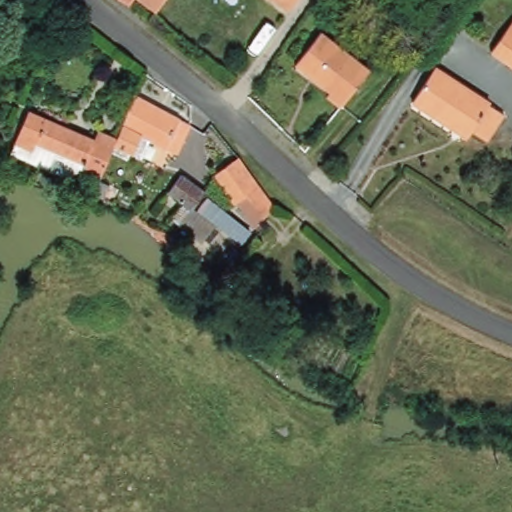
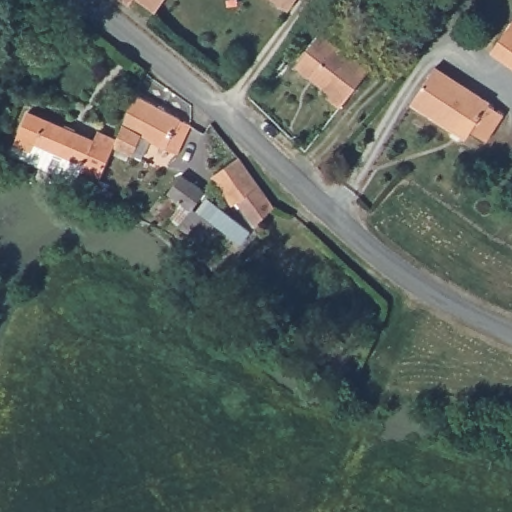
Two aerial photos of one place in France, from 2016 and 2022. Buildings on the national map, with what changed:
unchanged [(136,8),(123,0),(141,0),(136,8)]
unchanged [(163,14),(141,0),(172,0),(163,14)]
unchanged [(297,8),(284,0),(303,0),(297,8)]
unchanged [(503,57),(496,52),(512,26),(512,62),(503,57)]
unchanged [(375,69),(349,111),(334,103),(339,95),(299,72),(324,37),(375,69)]
unchanged [(416,108),(436,72),(478,96),(454,131),(416,108)]
unchanged [(197,129),(180,156),(149,141),(143,155),(119,143),(141,96),(197,129)]
unchanged [(496,106),(498,102),(512,110),(512,115),(494,145),(478,135),(474,142),(454,131),(478,96),(496,106)]
unchanged [(79,187),(15,155),(35,114),(91,141),(97,131),(119,143),(100,182),(86,175),(79,187)]
unchanged [(243,158),(259,180),(278,217),(279,221),(268,227),(269,231),(264,234),(243,200),(236,204),(218,175),(243,158)]
unchanged [(179,178),(208,189),(199,210),(170,198),(179,178)]
unchanged [(104,201),(94,196),(100,182),(111,187),(104,201)]
unchanged [(214,240),(190,231),(199,210),(222,220),(214,240)]

